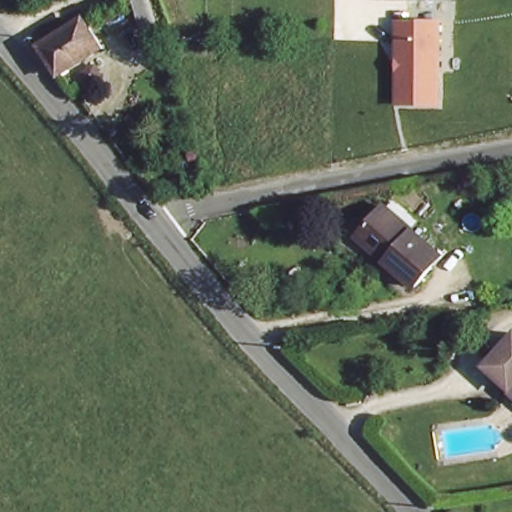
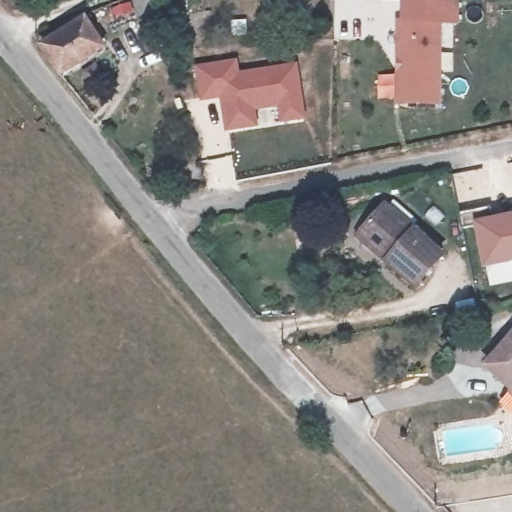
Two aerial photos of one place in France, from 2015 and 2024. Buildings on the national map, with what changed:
new [(458,0),(458,24),(442,24),(442,21),(401,21),(400,0),(458,0)]
unchanged [(157,34),(141,38),(132,8),(149,4),(157,34)]
unchanged [(394,106),(395,21),(442,21),(440,104),(394,106)]
unchanged [(67,80),(48,52),(90,25),(110,52),(67,80)]
new [(237,57),(240,71),(297,62),(306,120),(278,124),(275,109),(256,111),(258,127),(224,132),(219,99),(199,102),(193,65),(237,57)]
unchanged [(382,261),(385,256),(358,232),(381,205),(438,257),(412,286),(382,261)]
new [(485,270),(485,268),(483,269),(472,221),(512,213),(512,264),(485,270)]
new [(489,287),(485,270),(512,264),(512,282),(489,287)]
unchanged [(482,366),(512,334),(512,398),(505,392),(507,388),(482,366)]

